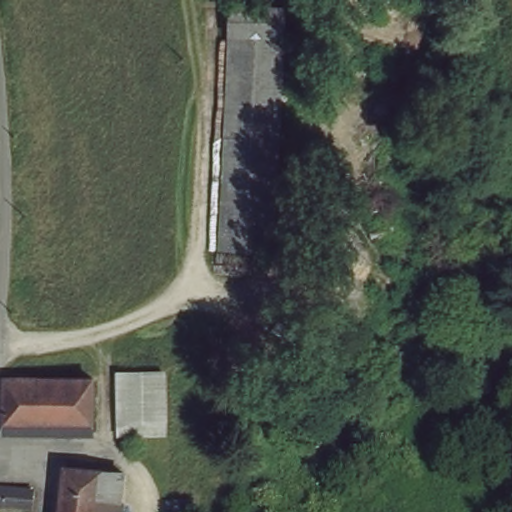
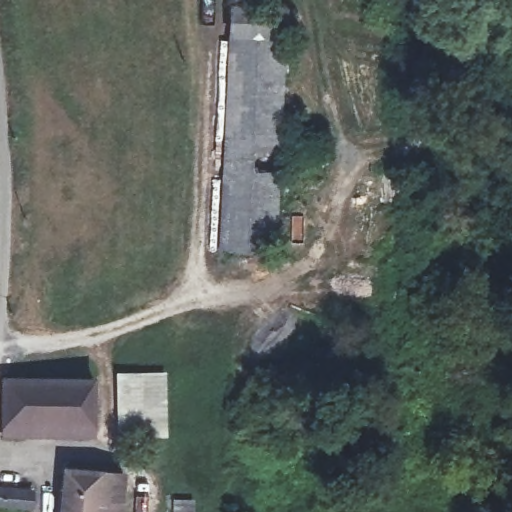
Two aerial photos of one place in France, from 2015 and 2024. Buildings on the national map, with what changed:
unchanged [(282,10),(273,251),(223,250),(232,9),(282,10)]
unchanged [(163,373),(165,432),(119,435),(117,375),(163,373)]
unchanged [(96,384),(96,428),(5,428),(8,384),(96,384)]
unchanged [(102,496),(100,512),(64,512),(70,463),(125,468),(123,512),(106,512),(107,497),(102,496)]
unchanged [(32,489),(30,509),(0,506),(0,486),(32,489)]
unchanged [(192,502),(192,512),(172,512),(172,501),(192,502)]

